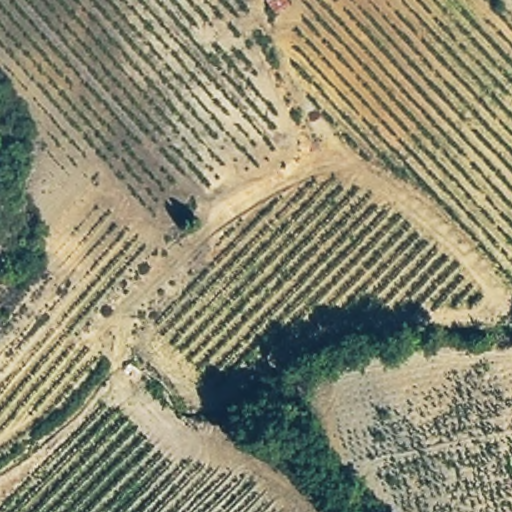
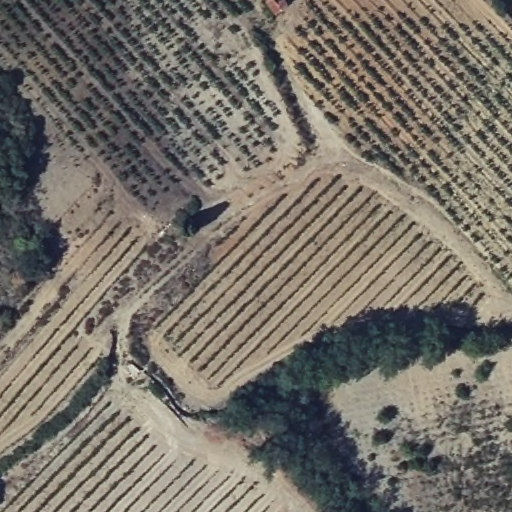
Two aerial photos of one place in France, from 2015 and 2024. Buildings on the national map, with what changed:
unchanged [(277,10),(270,0),(289,0),(277,10)]

